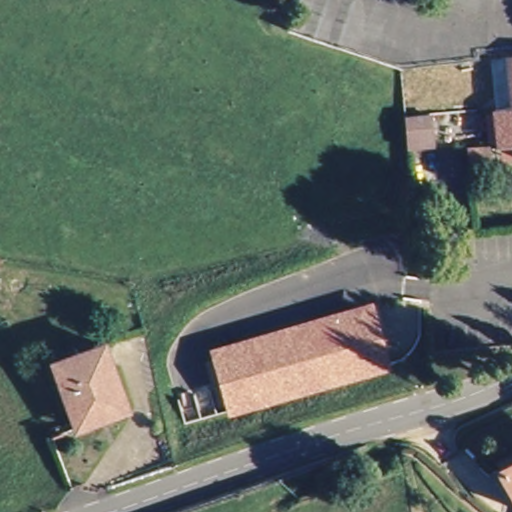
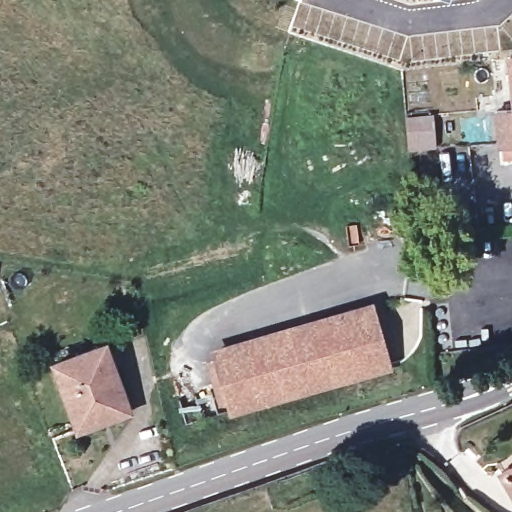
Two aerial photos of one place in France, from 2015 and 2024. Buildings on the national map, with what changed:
unchanged [(512,105),(512,148),(499,149),(496,107),(512,105)]
unchanged [(407,120),(436,119),(437,151),(409,152),(407,120)]
unchanged [(375,302),(393,372),(229,420),(226,409),(220,411),(208,367),(214,364),(210,350),(375,302)]
unchanged [(126,415),(75,429),(55,363),(107,349),(126,415)]
unchanged [(512,467),(512,479),(506,471),(512,467)]

